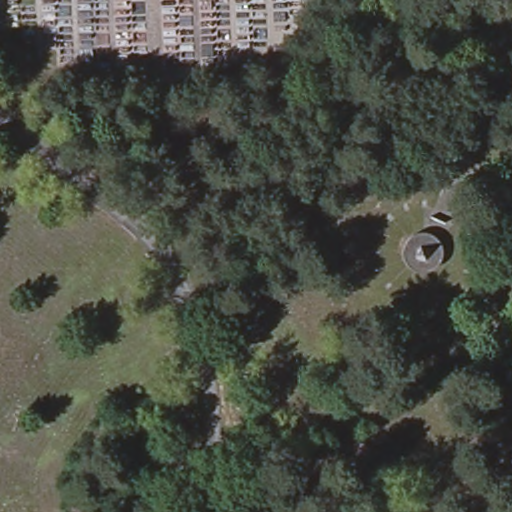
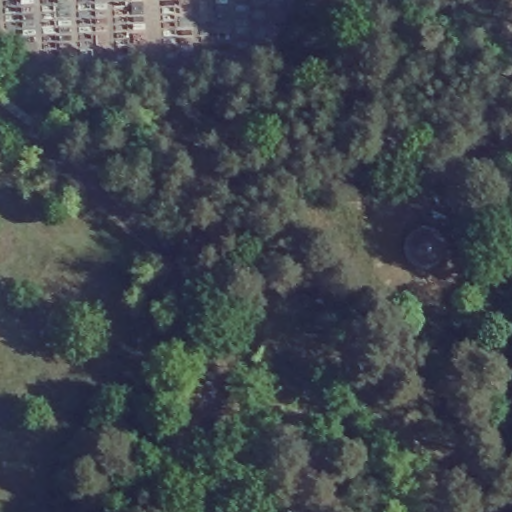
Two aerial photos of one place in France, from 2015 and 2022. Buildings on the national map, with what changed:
unchanged [(432,267),(420,268),(408,265),(402,254),(403,241),(412,232),(425,229),(435,235),(441,245),(442,253),(439,262),(432,267)]

